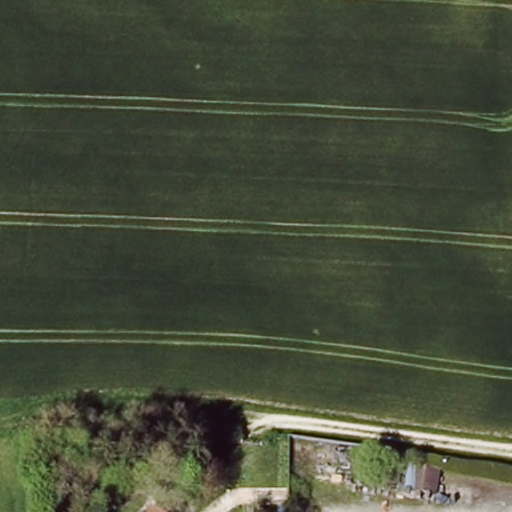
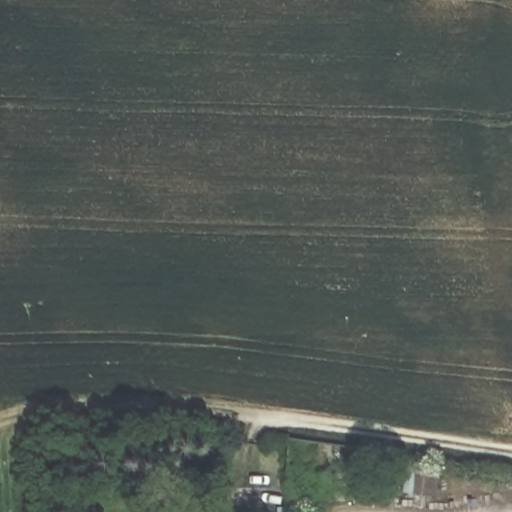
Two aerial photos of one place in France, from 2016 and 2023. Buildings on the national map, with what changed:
unchanged [(140,512),(150,500),(162,512),(140,512)]

